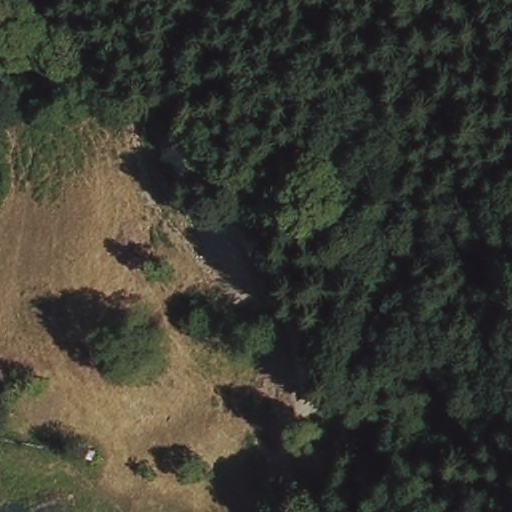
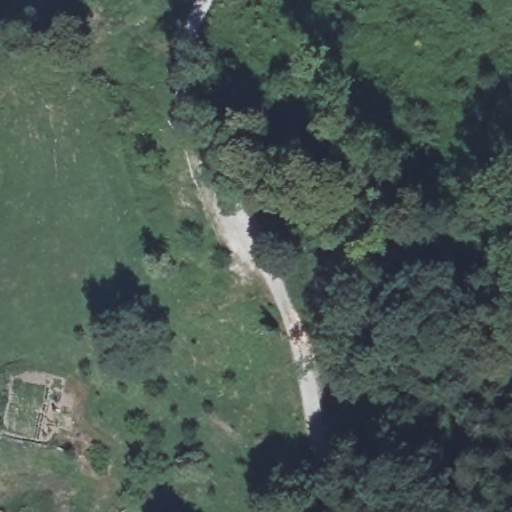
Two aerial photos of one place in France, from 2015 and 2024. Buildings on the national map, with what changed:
[]

